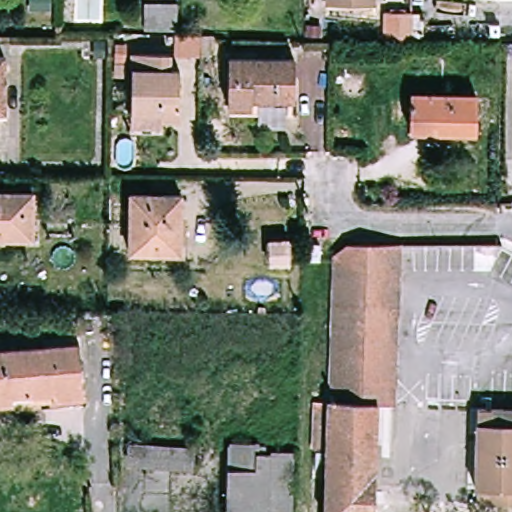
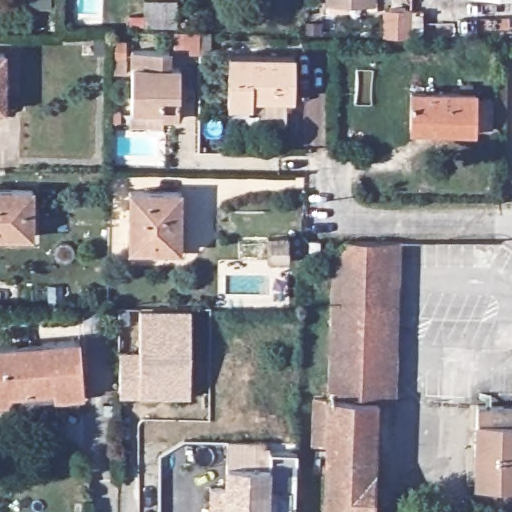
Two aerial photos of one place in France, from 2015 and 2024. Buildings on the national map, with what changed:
unchanged [(353,0),(341,0),(377,0),(377,1),(353,0)]
unchanged [(176,30),(142,29),(143,1),(176,2),(176,30)]
unchanged [(5,47),(5,102),(0,102),(0,47),(5,47)]
unchanged [(131,110),(133,53),(170,53),(170,70),(179,71),(177,121),(160,121),(131,120),(131,110)]
unchanged [(293,97),(253,96),(253,103),(230,102),(230,54),(294,55),(293,97)]
unchanged [(475,92),(474,127),(410,126),(411,89),(475,92)]
unchanged [(35,188),(33,235),(0,234),(0,187),(35,188)]
unchanged [(157,248),(129,248),(131,189),(182,190),(181,241),(180,249),(157,248)]
unchanged [(293,240),(294,261),(275,263),(272,241),(293,240)]
unchanged [(325,242),(324,259),(314,258),(315,242),(325,242)]
unchanged [(380,404),(377,512),(331,512),(338,254),(352,243),(357,243),(401,243),(397,404),(380,404)]
new [(190,396),(120,396),(121,351),(138,351),(139,309),(190,309),(190,396)]
unchanged [(0,399),(0,345),(80,339),(85,392),(56,395),(15,398),(0,399)]
unchanged [(495,501),(495,485),(481,484),(483,419),(496,420),(497,404),(512,405),(512,501),(505,501),(495,501)]
unchanged [(231,512),(233,437),(270,439),(270,447),(276,447),(274,512),(231,512)]
new [(193,464),(158,463),(163,441),(197,443),(193,464)]
new [(227,493),(227,512),(211,512),(211,492),(227,493)]

